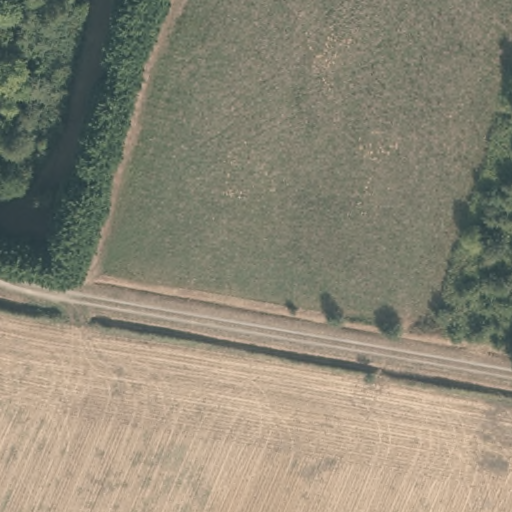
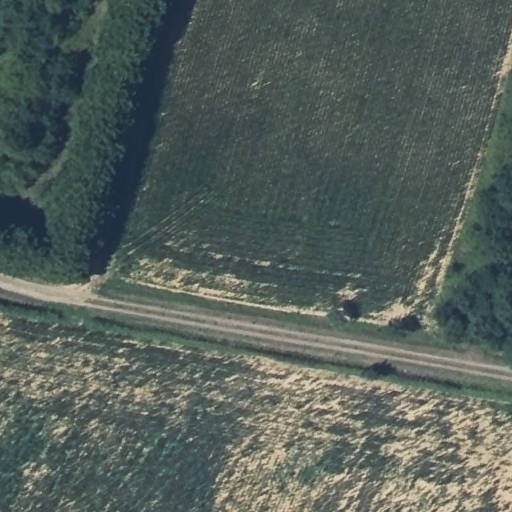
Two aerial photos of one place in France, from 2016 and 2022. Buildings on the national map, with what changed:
[]

